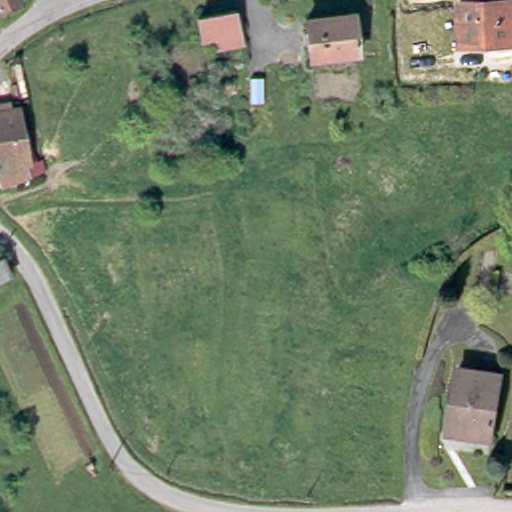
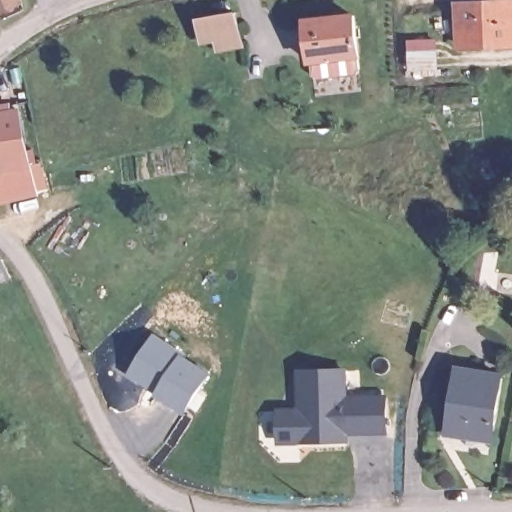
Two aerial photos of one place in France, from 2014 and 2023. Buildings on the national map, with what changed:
unchanged [(13,1),(0,7),(0,0),(13,0),(13,1)]
unchanged [(512,38),(459,39),(459,1),(512,0),(512,38)]
unchanged [(306,9),(346,7),(346,54),(306,56),(306,9)]
unchanged [(197,55),(189,17),(231,8),(238,44),(197,55)]
unchanged [(13,102),(23,155),(0,160),(0,105),(13,102)]
unchanged [(15,273),(0,279),(0,256),(15,273)]
new [(154,332),(184,350),(183,353),(208,370),(184,408),(156,392),(159,387),(151,380),(146,382),(129,371),(154,332)]
unchanged [(489,433),(445,428),(454,362),(497,367),(489,433)]
new [(301,406),(300,367),(344,366),(345,394),(385,393),(386,427),(346,428),(346,437),(280,438),(279,407),(301,406)]

